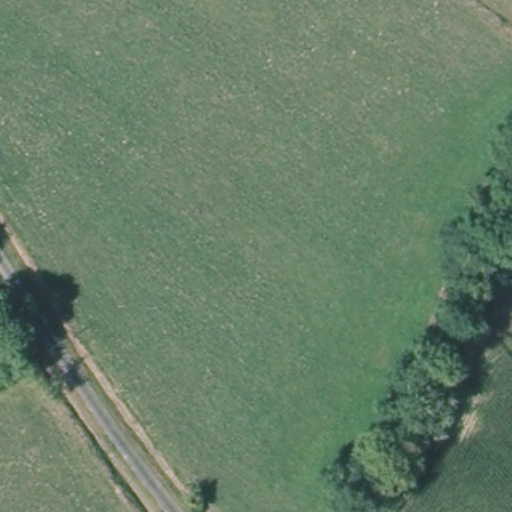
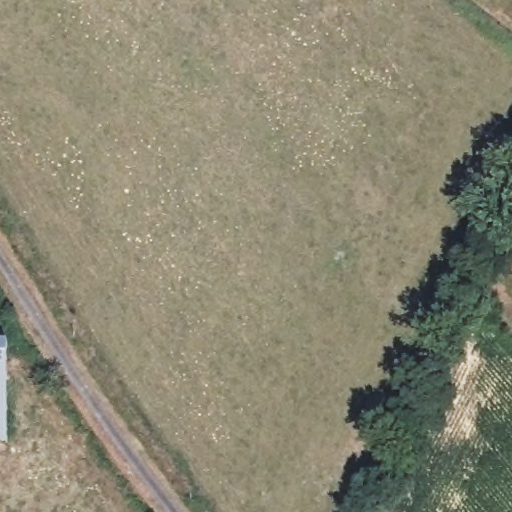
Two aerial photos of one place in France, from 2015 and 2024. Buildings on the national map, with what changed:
new [(5,346),(4,442),(0,442),(0,345),(5,346)]

